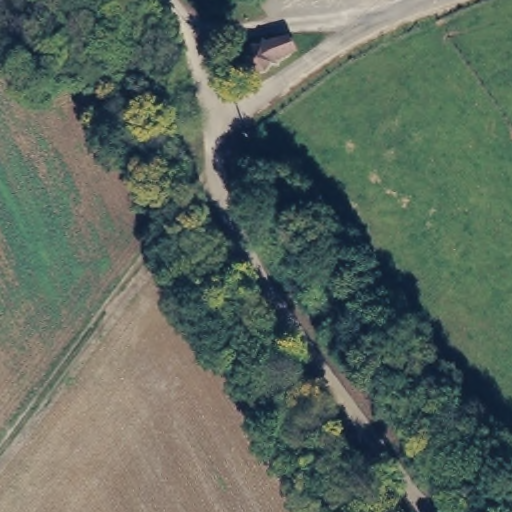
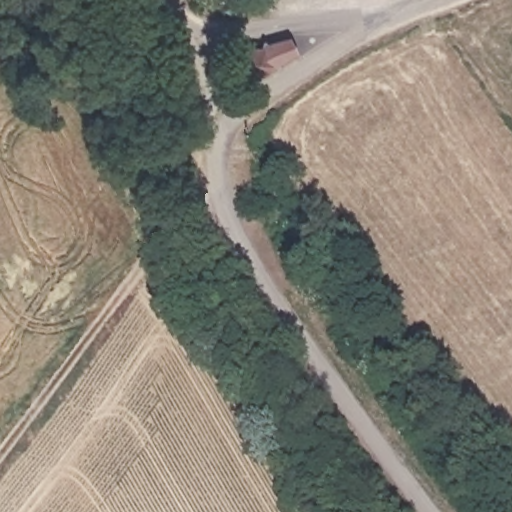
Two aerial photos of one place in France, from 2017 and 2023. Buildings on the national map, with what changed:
unchanged [(290,36),(296,49),(282,55),(283,59),(274,58),(268,60),(267,66),(258,66),(250,54),(257,42),(264,48),(272,38),(277,41),(290,36)]

